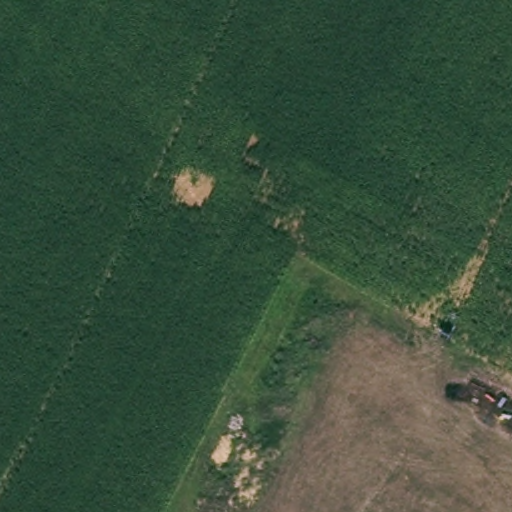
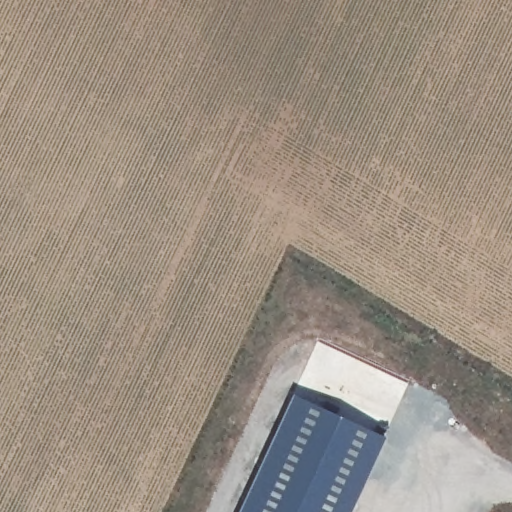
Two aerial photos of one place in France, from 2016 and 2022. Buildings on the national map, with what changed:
new [(384,437),(349,512),(238,512),(291,395),(384,437)]

